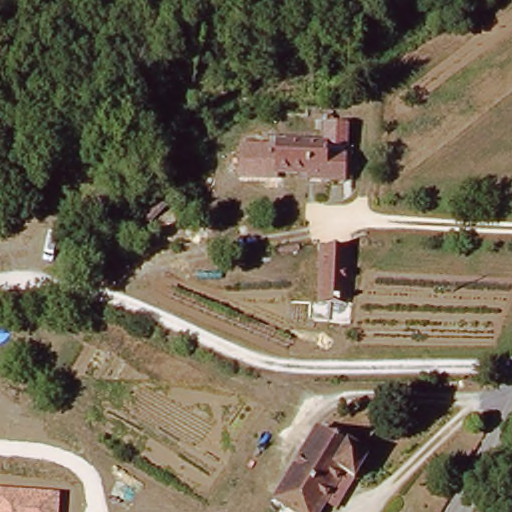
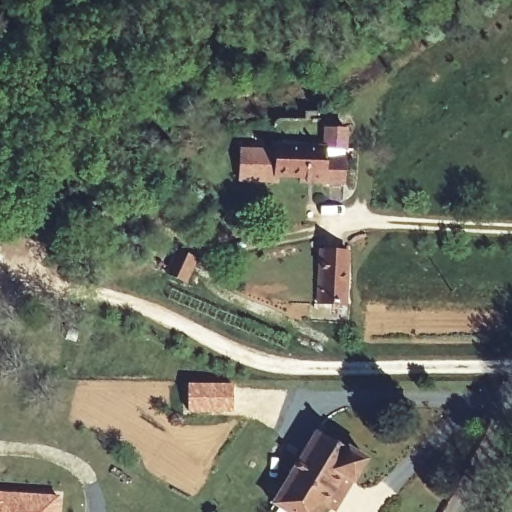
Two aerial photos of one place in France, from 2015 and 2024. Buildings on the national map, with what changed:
unchanged [(344,187),(316,185),(316,181),(283,176),(288,142),(331,147),(333,132),(351,134),(344,187)]
unchanged [(280,149),(279,181),(239,181),(240,149),(280,149)]
unchanged [(131,238),(100,251),(84,222),(117,206),(131,238)]
unchanged [(349,306),(319,305),(321,251),(351,252),(349,306)]
new [(191,385),(236,386),(236,410),(190,410),(191,385)]
unchanged [(344,473),(322,512),(285,512),(276,507),(318,431),(367,454),(354,479),(344,473)]
unchanged [(58,512),(0,512),(0,493),(59,495),(58,512)]

